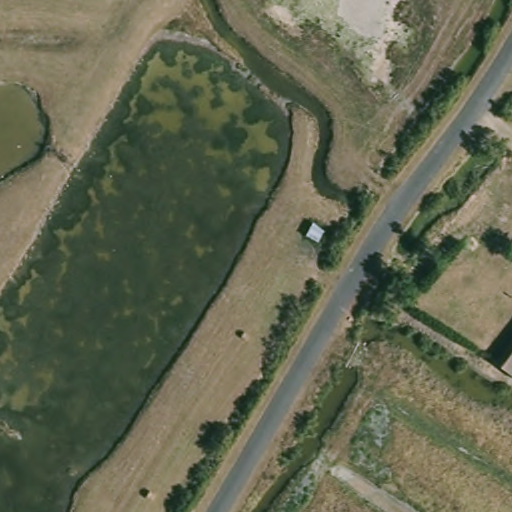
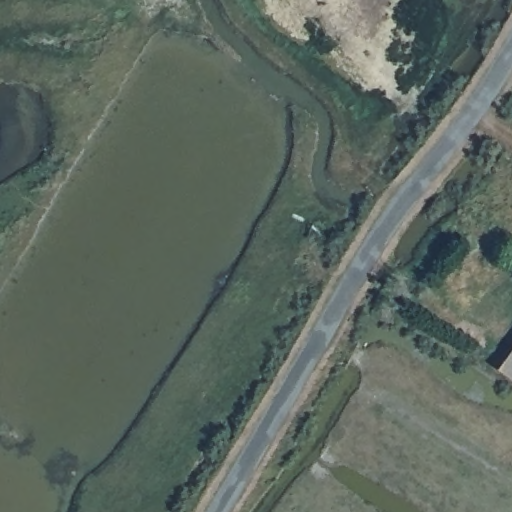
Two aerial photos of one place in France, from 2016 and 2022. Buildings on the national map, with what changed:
unchanged [(512,354),(512,384),(497,372),(512,354)]

